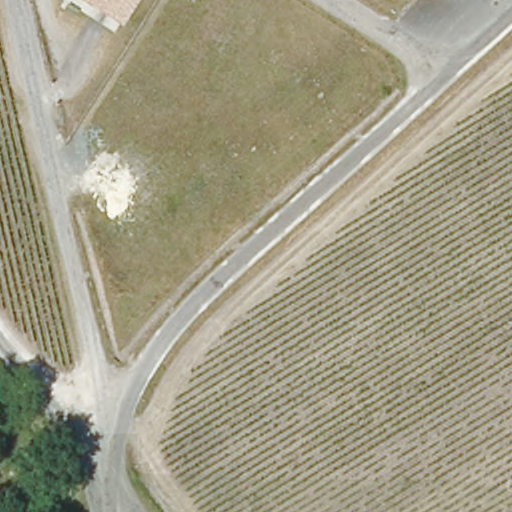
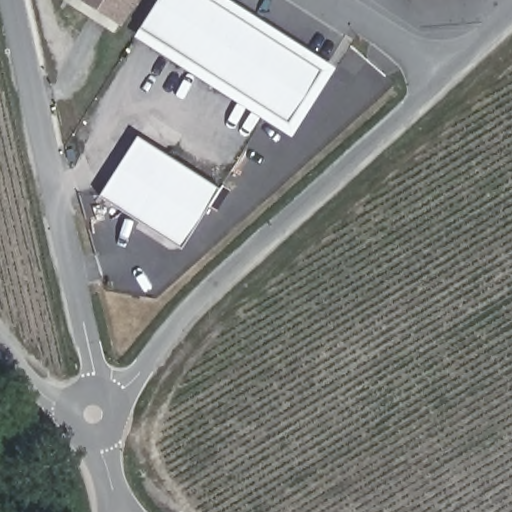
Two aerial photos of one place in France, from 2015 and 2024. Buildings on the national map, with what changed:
unchanged [(135,0),(120,24),(81,0),(135,0)]
new [(159,0),(232,0),(336,67),(292,136),(135,36),(159,0)]
new [(182,248),(100,196),(140,136),(221,187),(182,248)]

